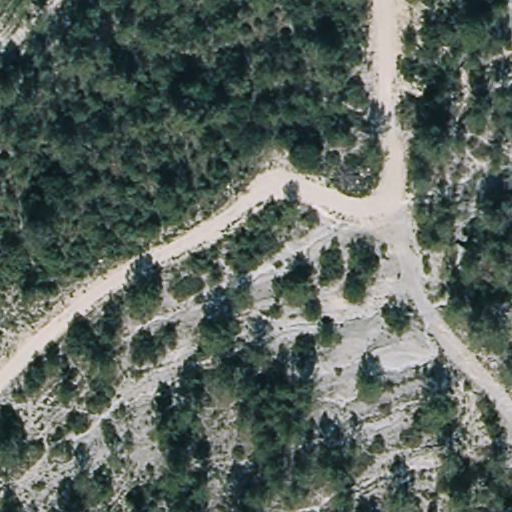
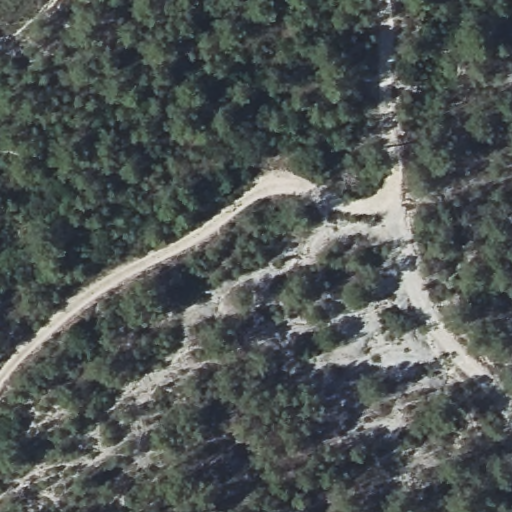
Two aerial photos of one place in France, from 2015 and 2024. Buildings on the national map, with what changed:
[]

